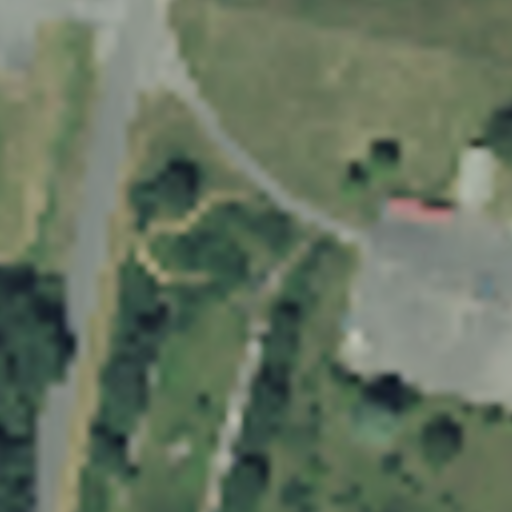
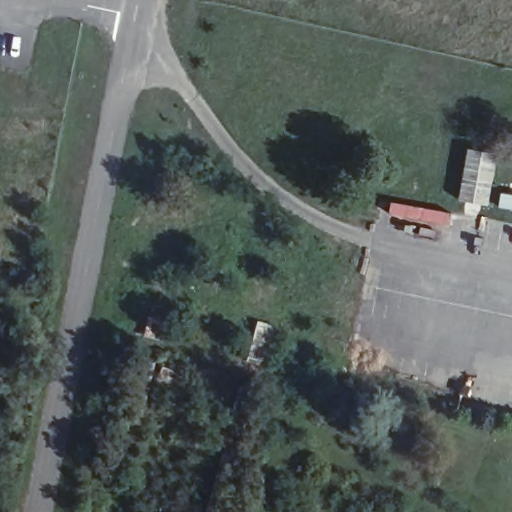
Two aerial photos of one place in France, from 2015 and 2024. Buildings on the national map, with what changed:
unchanged [(456,196),(469,142),(502,150),(487,203),(456,196)]

